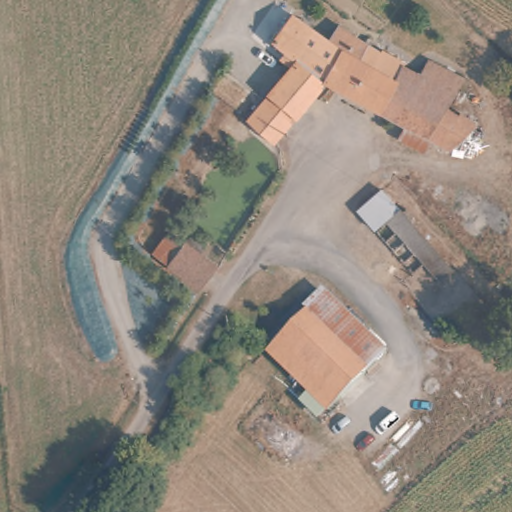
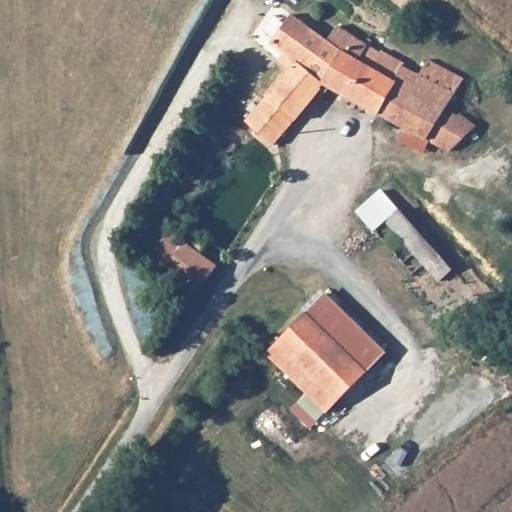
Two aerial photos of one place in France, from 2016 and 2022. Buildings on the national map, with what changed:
unchanged [(407,63),(414,53),(465,81),(449,114),(463,122),(466,116),(481,122),(454,145),(337,85),(285,144),(259,123),(270,112),(272,110),(307,62),(283,44),(302,15),(307,18),(329,35),(338,26),(407,63)]
unchanged [(446,282),(380,212),(372,220),(359,205),(383,185),(395,199),(461,268),(446,282)]
unchanged [(171,229),(192,242),(201,232),(215,241),(208,254),(222,259),(201,288),(153,254),(171,229)]
unchanged [(272,351),(327,293),(389,353),(331,413),(272,351)]

